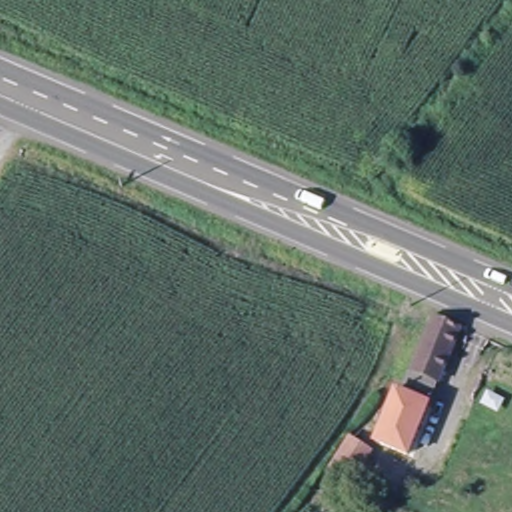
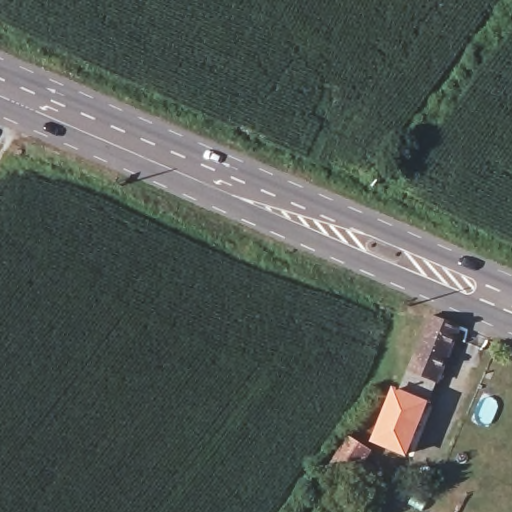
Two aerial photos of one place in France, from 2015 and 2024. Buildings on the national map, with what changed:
unchanged [(435,320),(461,330),(444,385),(438,383),(412,456),(379,445),(398,393),(406,396),(430,327),(435,320)]
unchanged [(347,445),(369,458),(364,466),(351,488),(330,477),(347,445)]

